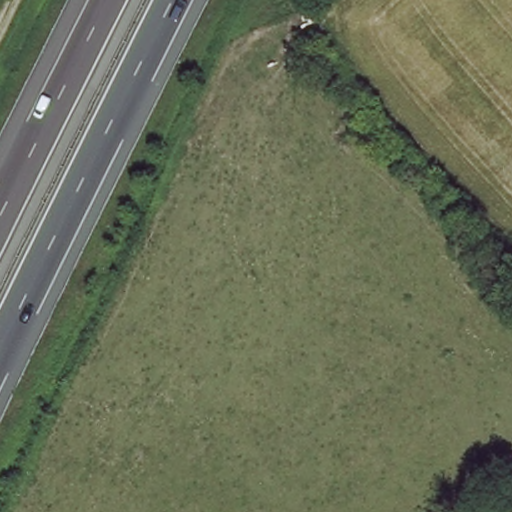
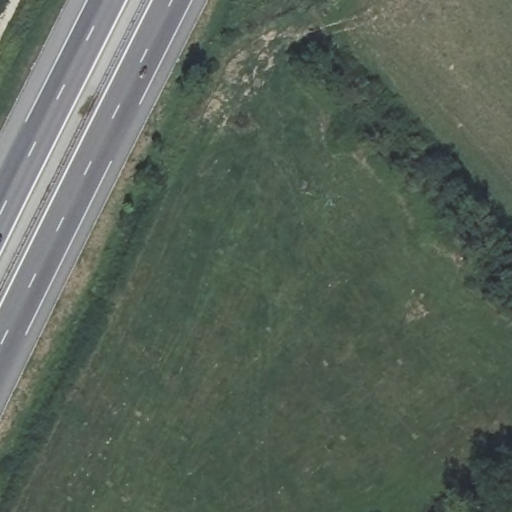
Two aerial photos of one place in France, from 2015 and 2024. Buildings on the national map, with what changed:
[]

